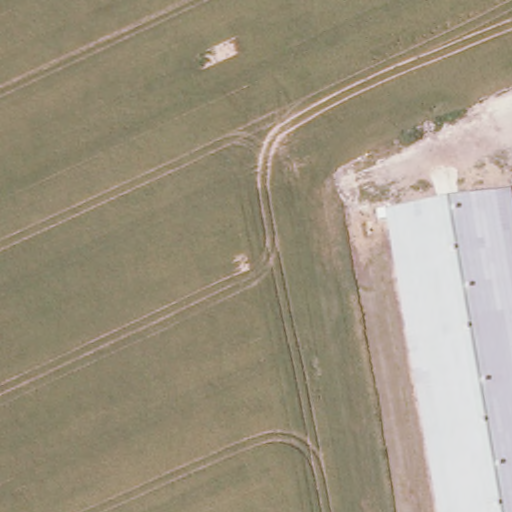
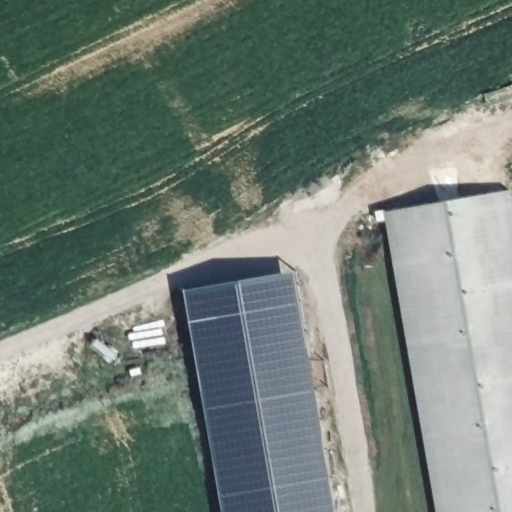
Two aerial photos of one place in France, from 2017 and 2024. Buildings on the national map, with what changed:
unchanged [(512,193),(512,512),(438,512),(385,212),(512,190),(512,193)]
new [(190,302),(194,301),(192,292),(295,275),(335,512),(226,512),(190,302)]

